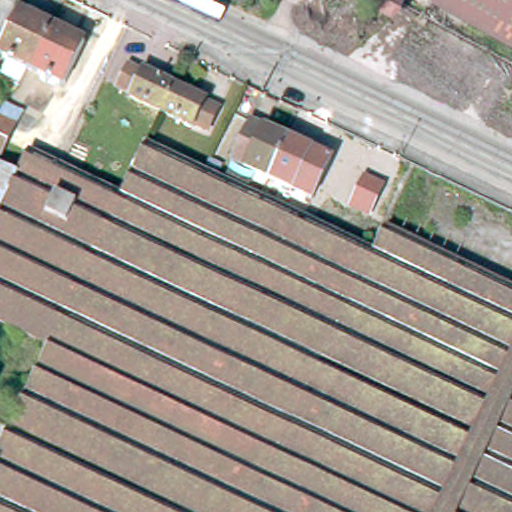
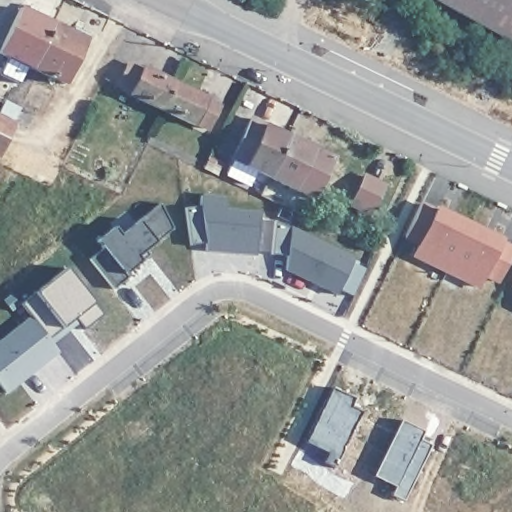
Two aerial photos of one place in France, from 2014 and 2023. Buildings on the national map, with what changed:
unchanged [(432,2),(427,13),(396,0),(388,15),(373,7),(377,0),(512,0),(512,44),(432,2)]
unchanged [(18,59),(10,54),(17,37),(22,28),(30,10),(35,13),(38,6),(48,11),(45,17),(47,18),(61,25),(41,69),(37,67),(30,84),(11,75),(18,59)]
unchanged [(70,83),(41,69),(61,25),(90,38),(82,55),(77,66),(70,83)]
unchanged [(160,109),(132,96),(134,91),(123,86),(130,73),(140,78),(144,68),(173,82),(202,95),(197,105),(202,108),(200,113),(195,111),(190,123),(160,109)]
unchanged [(302,185),(280,174),(265,167),(258,183),(242,175),(238,173),(245,158),(241,156),(260,115),(298,133),(322,144),(317,153),(332,160),(321,183),(307,176),(303,183),(302,185)]
unchanged [(2,157),(0,156),(0,117),(17,125),(2,157)]
demolished [(42,347),(0,323),(0,160),(20,167),(24,151),(118,188),(142,139),(372,246),(382,223),(512,286),(512,512),(0,512),(0,437),(42,347)]
new [(385,186),(369,218),(348,207),(363,177),(385,186)]
new [(183,208),(198,206),(198,196),(224,198),(223,211),(257,214),(254,254),(237,253),(237,251),(230,251),(230,253),(205,251),(203,244),(188,246),(183,208)]
new [(498,281),(483,275),(478,286),(412,255),(418,243),(403,236),(420,205),(434,212),(435,210),(500,241),(500,243),(512,249),(512,253),(498,281)]
new [(88,260),(101,249),(95,242),(112,229),(117,236),(158,206),(170,230),(135,258),(139,262),(123,276),(126,278),(112,290),(88,260)]
demolished [(512,267),(512,286),(382,223),(388,211),(512,267)]
new [(352,257),(335,293),(285,269),(285,256),(269,254),(272,221),(352,257)]
new [(50,345),(47,340),(19,305),(65,269),(102,315),(82,330),(73,319),(77,324),(50,345)]
new [(511,288),(512,286),(512,288),(511,288)]
new [(57,352),(25,377),(23,375),(19,379),(20,381),(5,393),(0,387),(0,341),(30,318),(57,352)]

